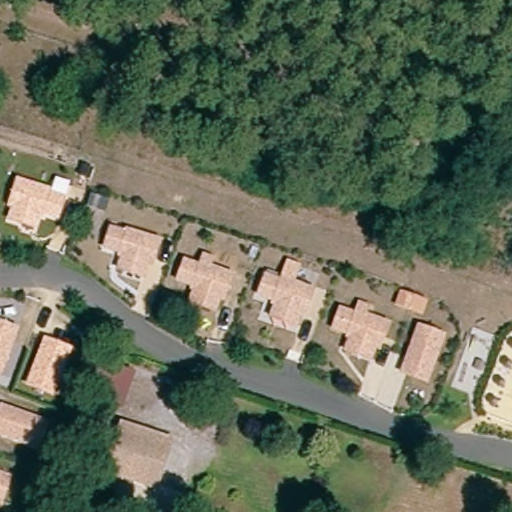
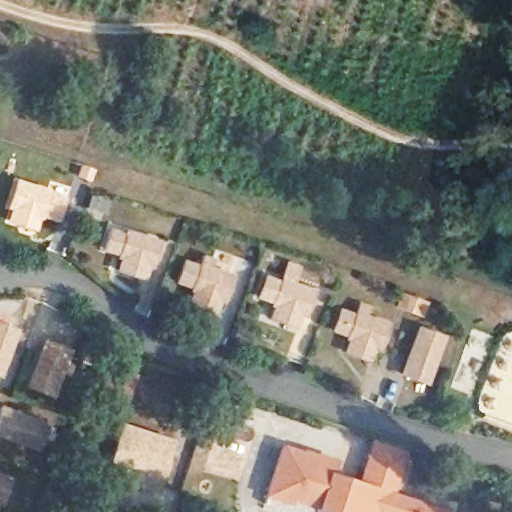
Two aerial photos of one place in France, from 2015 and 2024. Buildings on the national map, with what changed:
unchanged [(13,219),(17,206),(13,205),(21,180),(55,190),(54,193),(68,198),(62,217),(47,212),(47,215),(42,214),(38,227),(13,219)]
unchanged [(124,263),(126,256),(122,255),(122,252),(108,247),(114,228),(128,232),(129,229),(163,240),(155,265),(151,264),(149,270),(124,263)]
unchanged [(190,301),(195,288),(190,287),(191,284),(177,279),(184,259),(198,264),(203,252),(214,256),(211,266),(233,273),(224,299),(219,297),(215,310),(190,301)]
unchanged [(273,309),(276,303),(271,301),(272,298),(258,293),(265,274),(279,279),(280,276),(313,288),(304,313),(300,312),(298,318),(273,309)]
unchanged [(346,354),(350,341),(346,339),(347,336),(333,331),(340,312),(354,317),(358,305),(370,309),(366,318),(388,326),(379,351),(375,349),(371,362),(346,354)]
unchanged [(0,375),(0,323),(16,329),(4,363),(0,375)]
unchanged [(402,376),(408,360),(419,329),(444,338),(432,372),(427,385),(402,376)]
unchanged [(27,384),(31,372),(44,339),(69,348),(57,382),(52,394),(27,384)]
unchanged [(103,368),(110,370),(136,380),(124,410),(98,400),(92,398),(103,368)]
unchanged [(43,448),(10,436),(0,433),(0,423),(6,406),(18,411),(52,422),(43,448)]
unchanged [(104,468),(114,439),(119,424),(166,440),(162,454),(152,483),(104,468)]
new [(444,512),(315,512),(314,512),(315,505),(293,499),(292,504),(266,495),(282,442),(338,459),(335,470),(360,478),(371,438),(407,449),(395,491),(445,507),(444,512)]
unchanged [(0,512),(0,484),(11,488),(2,512),(1,512),(0,512)]

